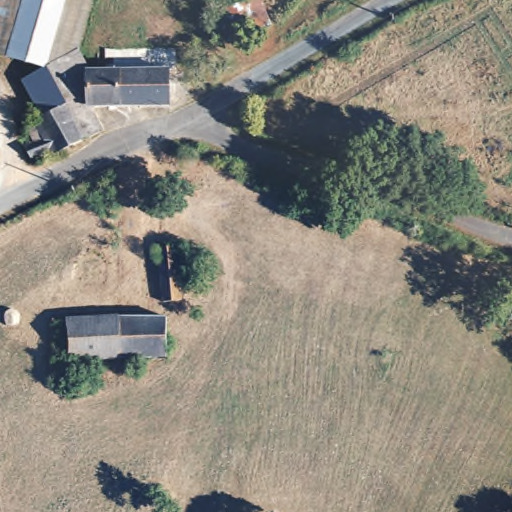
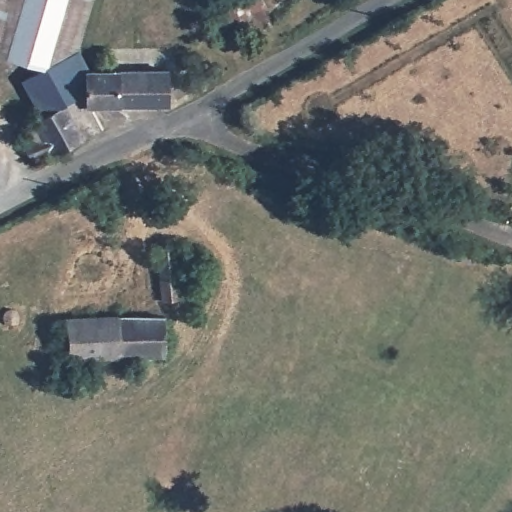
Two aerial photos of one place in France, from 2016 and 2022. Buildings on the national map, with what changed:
unchanged [(0,55),(0,0),(21,0),(5,57),(0,55)]
unchanged [(18,152),(30,143),(21,129),(36,119),(12,83),(41,66),(5,57),(21,0),(87,0),(74,46),(87,68),(186,69),(205,70),(205,89),(188,90),(188,97),(177,106),(122,106),(87,106),(87,80),(49,77),(84,129),(27,164),(20,155),(18,152)]
unchanged [(207,18),(194,2),(197,0),(243,0),(213,26),(207,18)]
unchanged [(174,252),(176,298),(160,307),(159,262),(174,252)]
unchanged [(117,322),(118,357),(64,358),(65,377),(46,377),(45,325),(117,322)]
unchanged [(161,322),(162,356),(130,357),(118,357),(117,322),(161,322)]

